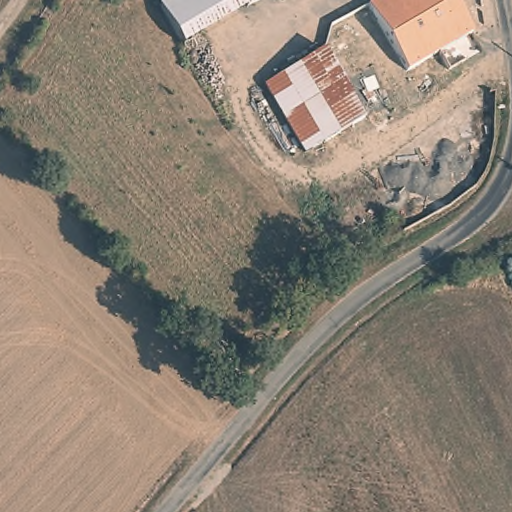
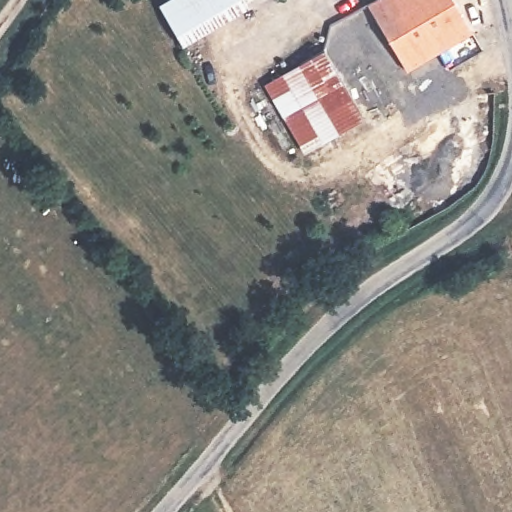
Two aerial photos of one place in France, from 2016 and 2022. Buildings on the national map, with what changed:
unchanged [(171,39),(155,11),(173,0),(234,0),(235,1),(171,39)]
unchanged [(234,0),(263,0),(241,12),(235,1),(234,0)]
unchanged [(378,0),(452,0),(472,33),(406,71),(367,6),(378,0)]
unchanged [(305,152),(265,85),(324,51),(364,118),(305,152)]

